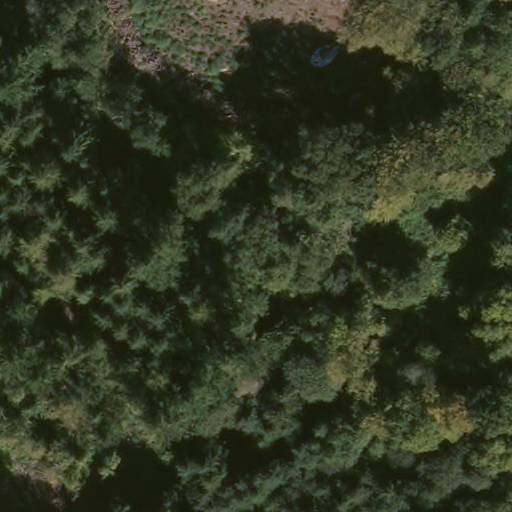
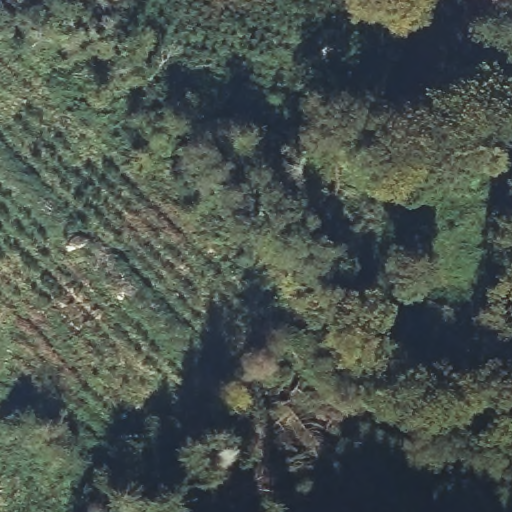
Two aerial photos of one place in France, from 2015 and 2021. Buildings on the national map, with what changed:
[]

